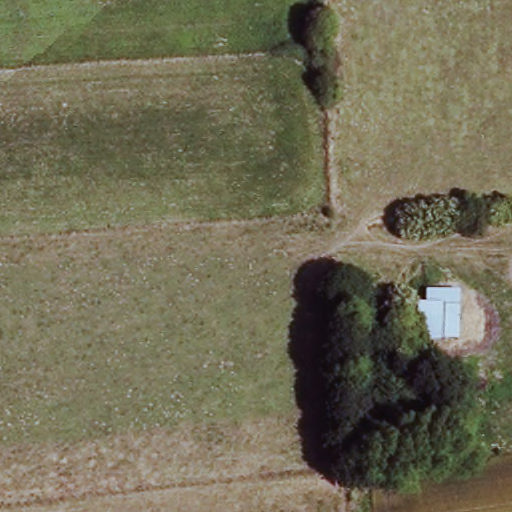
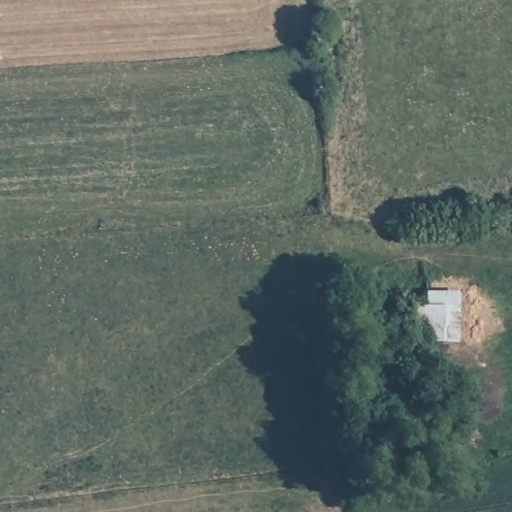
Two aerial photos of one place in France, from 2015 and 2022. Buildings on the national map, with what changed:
unchanged [(460,338),(417,338),(419,303),(428,303),(429,291),(462,290),(460,338)]

